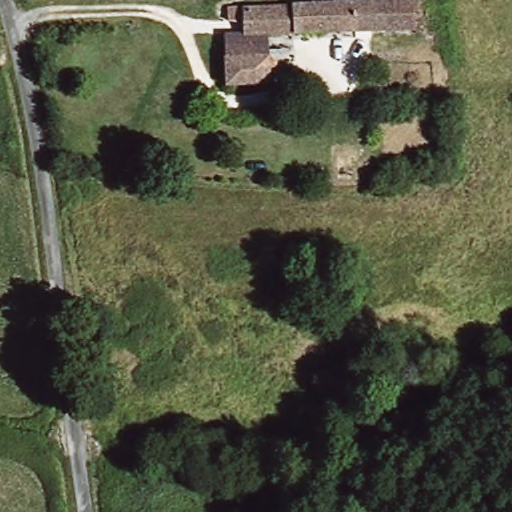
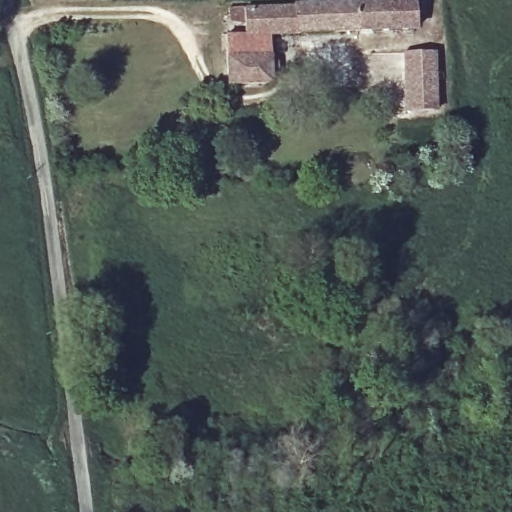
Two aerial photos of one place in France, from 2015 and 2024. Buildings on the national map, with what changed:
unchanged [(228,85),(226,25),(240,25),(240,14),(248,14),(250,6),(351,0),(359,0),(360,34),(267,40),(268,53),(270,84),(228,85)]
unchanged [(413,0),(415,30),(360,34),(359,0),(413,0)]
new [(436,51),(437,112),(401,113),(400,52),(436,51)]

